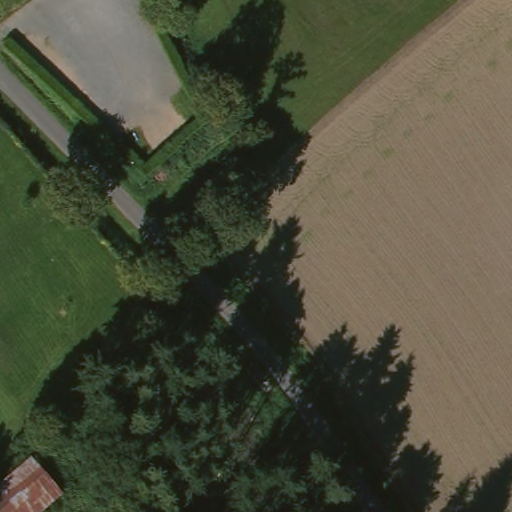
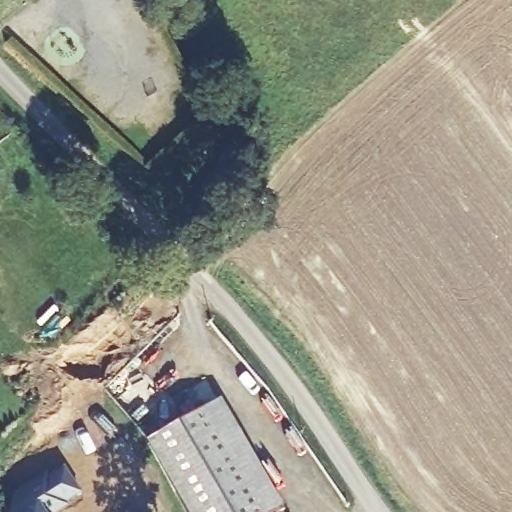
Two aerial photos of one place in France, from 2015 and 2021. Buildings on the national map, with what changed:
unchanged [(174,191),(204,161),(221,179),(190,208),(174,191)]
new [(276,512),(183,512),(144,443),(219,399),(281,510),(276,512)]

